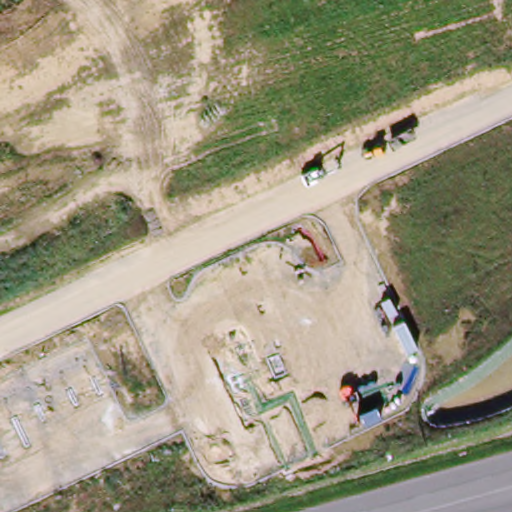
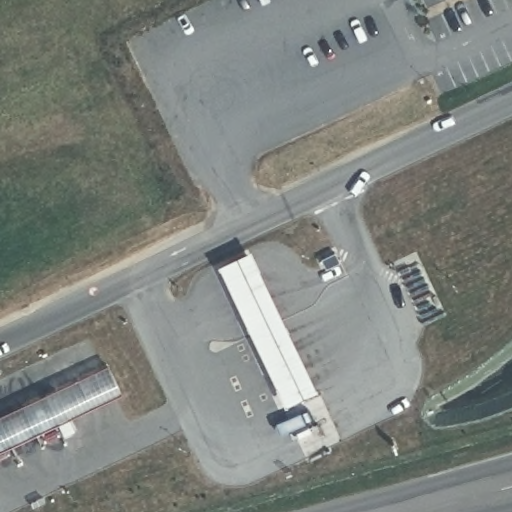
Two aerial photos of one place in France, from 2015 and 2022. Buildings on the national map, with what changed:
new [(293,343),(262,359),(215,265),(247,250),(293,343)]
new [(335,252),(339,261),(325,268),(320,258),(335,252)]
new [(317,390),(285,406),(262,359),(293,343),(317,390)]
new [(0,414),(109,363),(124,394),(0,450),(0,414)]

